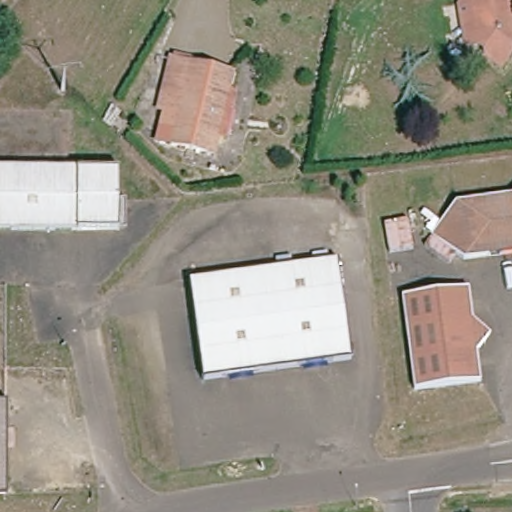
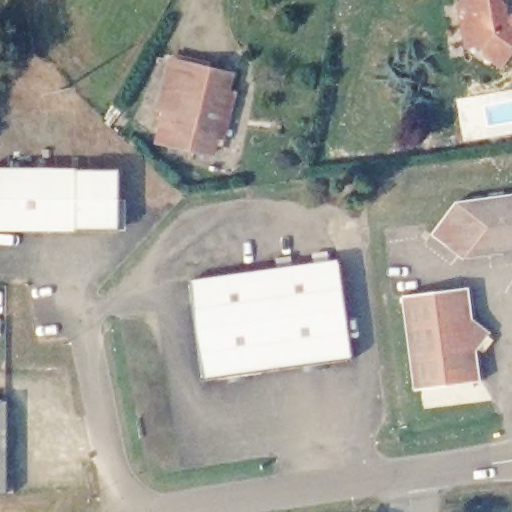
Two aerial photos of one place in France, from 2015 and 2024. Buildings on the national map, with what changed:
unchanged [(504,66),(490,52),(487,50),(478,51),(466,53),(460,14),(473,12),(472,10),(483,8),(482,0),(512,0),(512,60),(504,66)]
unchanged [(214,65),(234,69),(215,151),(176,143),(165,140),(164,140),(173,96),(168,95),(176,57),(214,65)]
unchanged [(119,229),(0,226),(0,165),(121,168),(119,229)]
unchanged [(467,257),(435,233),(459,201),(512,196),(512,252),(467,257)]
unchanged [(191,279),(340,260),(353,360),(204,378),(191,279)]
unchanged [(470,288),(474,320),(492,333),(478,350),(482,382),(416,390),(404,296),(470,288)]
unchanged [(13,493),(0,493),(0,401),(12,401),(13,493)]

